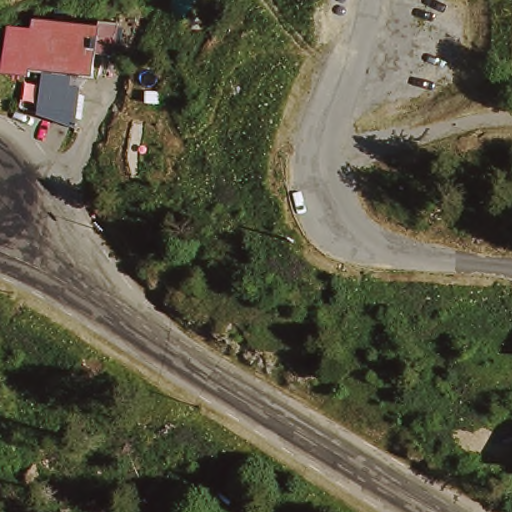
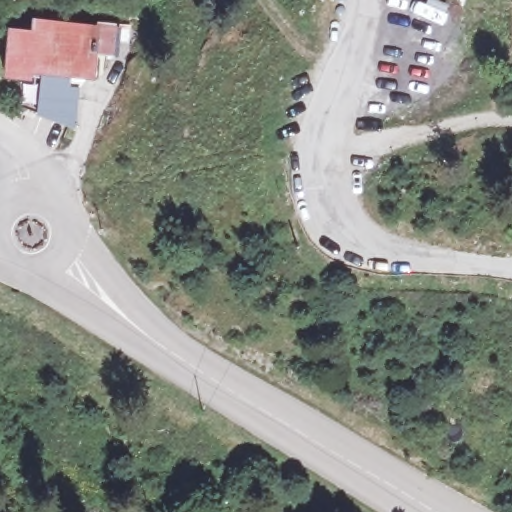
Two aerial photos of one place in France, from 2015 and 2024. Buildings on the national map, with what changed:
unchanged [(0,73),(0,38),(1,29),(22,32),(24,21),(87,27),(87,23),(106,25),(107,55),(101,56),(101,73),(92,75),(91,77),(81,77),(65,131),(57,127),(11,106),(15,75),(0,73)]

